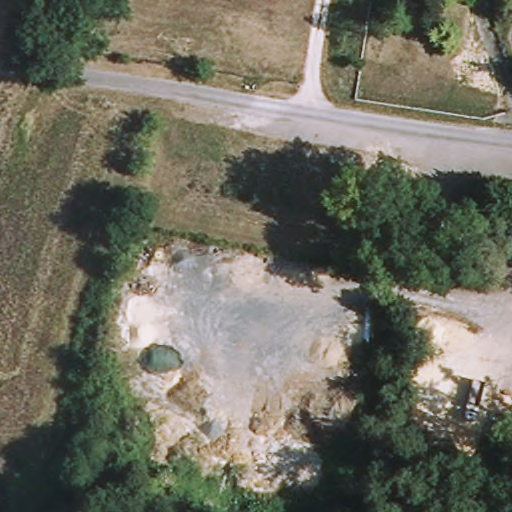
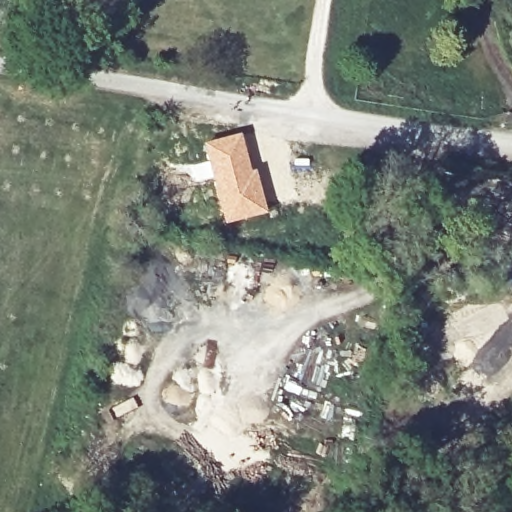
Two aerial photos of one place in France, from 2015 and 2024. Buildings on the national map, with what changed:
new [(242,131),(251,169),(256,167),(267,213),(224,224),(202,141),(242,131)]

